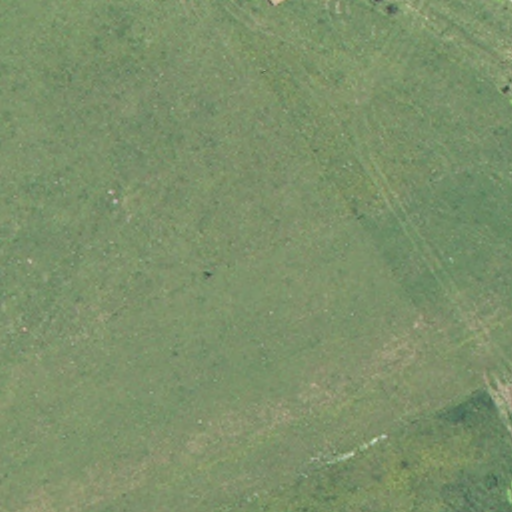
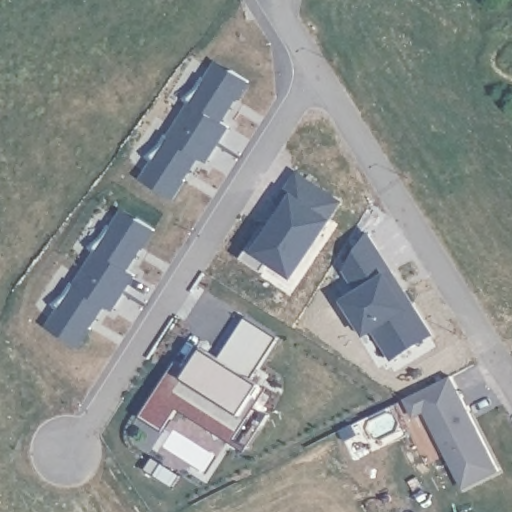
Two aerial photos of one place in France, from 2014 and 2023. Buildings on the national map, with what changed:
new [(193,106),(186,99),(198,87),(205,76),(210,79),(219,64),(232,72),(233,70),(250,81),(237,100),(233,97),(230,105),(232,107),(223,122),(230,126),(219,144),(183,121),(193,106)]
new [(155,165),(150,156),(162,147),(161,146),(169,134),(173,137),(183,121),(219,144),(207,162),(200,157),(190,172),(188,171),(183,177),(187,180),(175,199),(158,188),(160,186),(147,178),(155,165)]
new [(337,219),(297,280),(272,263),(265,272),(245,258),(267,226),(272,229),(287,206),(279,202),(300,170),(341,199),(330,215),(337,219)]
new [(99,254),(92,247),(104,236),(112,224),(115,227),(125,212),(137,220),(139,218),(156,229),(144,249),(140,246),(136,252),(138,254),(128,269),(137,274),(125,292),(89,269),(99,254)]
new [(359,291),(347,270),(370,232),(435,336),(392,360),(375,333),(369,337),(345,300),(359,291)]
new [(62,312),(55,304),(68,295),(67,293),(75,282),(79,284),(89,269),(125,292),(114,310),(106,305),(97,320),(93,318),(89,325),(93,327),(81,347),(63,336),(65,333),(52,326),(62,312)]
new [(192,370),(207,348),(223,359),(247,318),(280,337),(254,379),(262,385),(267,388),(235,438),(250,447),(247,451),(180,407),(165,431),(142,417),(177,360),(192,370)]
new [(452,377),(500,471),(464,488),(427,412),(415,418),(406,398),(452,377)]

